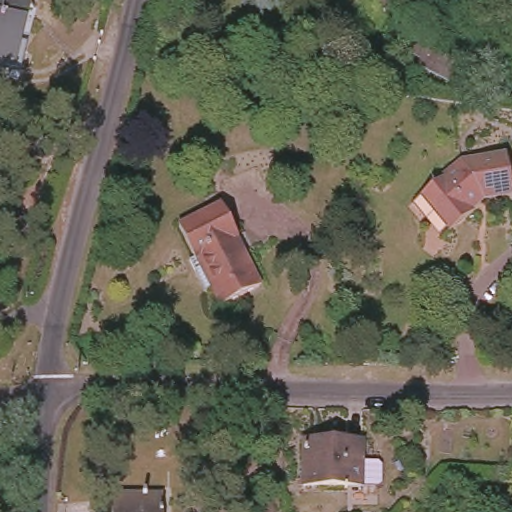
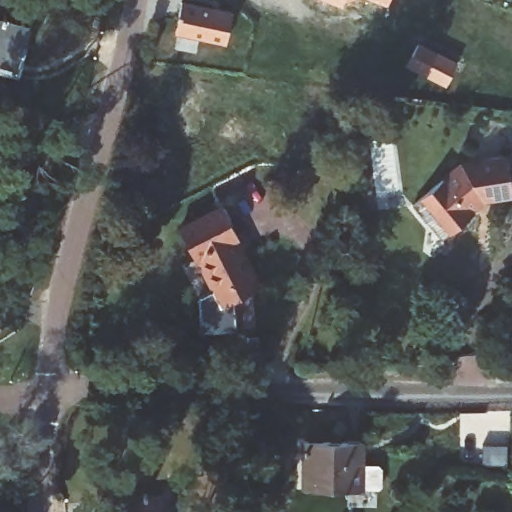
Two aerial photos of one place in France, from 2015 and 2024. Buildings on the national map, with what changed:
unchanged [(34,8),(20,66),(0,61),(0,0),(7,0),(34,8)]
new [(386,14),(340,0),(390,0),(386,14)]
new [(211,34),(210,41),(175,34),(182,1),(233,11),(228,37),(211,34)]
unchanged [(406,65),(417,45),(459,65),(448,86),(406,65)]
unchanged [(411,194),(463,156),(508,149),(512,167),(512,187),(481,194),(469,202),(472,207),(447,225),(437,231),(424,212),(411,194)]
unchanged [(3,197),(0,204),(0,195),(3,197)]
unchanged [(242,234),(235,238),(242,250),(243,249),(263,283),(228,302),(219,286),(222,284),(205,255),(200,258),(183,230),(225,206),(242,234)]
unchanged [(356,464),(372,464),(375,468),(375,486),(371,490),(356,489),(356,490),(297,490),(299,441),(357,441),(356,464)]
unchanged [(160,492),(160,512),(111,512),(111,491),(160,492)]

